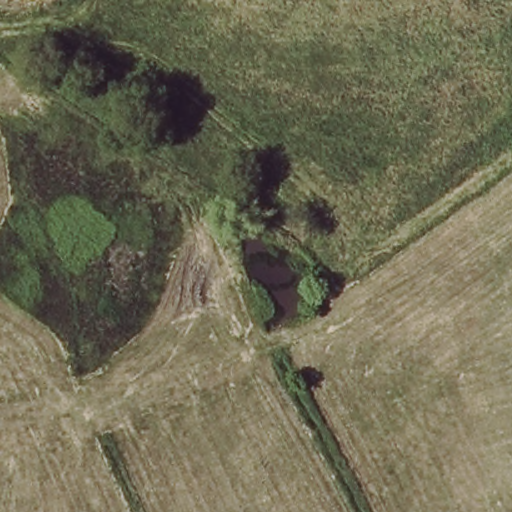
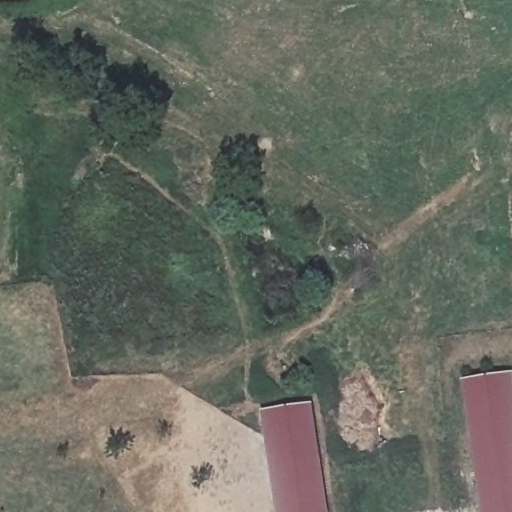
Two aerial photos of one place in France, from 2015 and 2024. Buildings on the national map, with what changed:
new [(512,372),(512,375),(512,512),(483,512),(463,379),(512,372)]
new [(311,403),(328,512),(276,512),(260,410),(311,403)]

